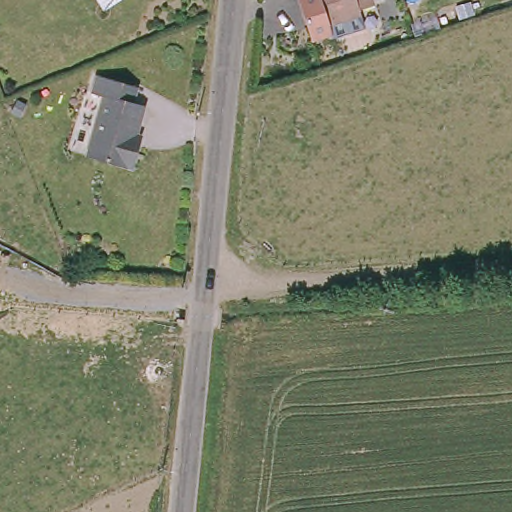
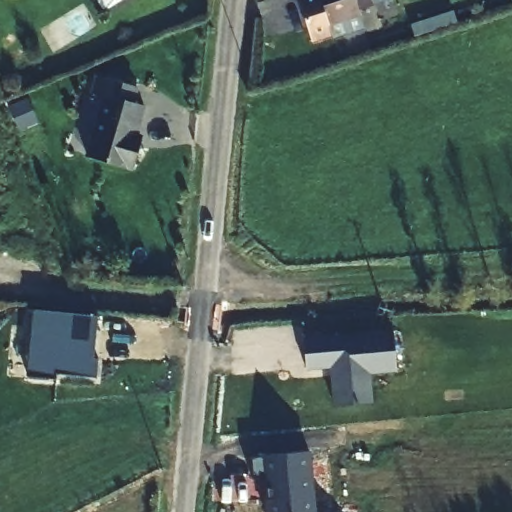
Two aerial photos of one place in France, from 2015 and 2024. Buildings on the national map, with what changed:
unchanged [(374,5),(376,9),(343,20),(346,33),(324,39),(314,0),(388,0),(389,1),(374,5)]
unchanged [(136,87),(133,103),(143,106),(133,146),(139,149),(133,168),(90,153),(104,96),(94,91),(98,75),(136,87)]
new [(91,359),(100,360),(98,380),(58,375),(58,381),(29,379),(35,311),(99,317),(95,353),(95,359),(91,359)]
new [(307,371),(304,340),(394,330),(397,371),(371,374),(373,401),(334,405),(330,370),(307,371)]
new [(264,475),(252,476),(251,460),(311,451),(317,512),(267,512),(264,475)]

